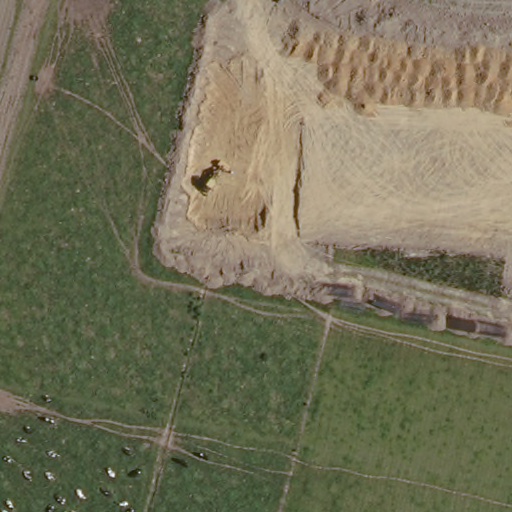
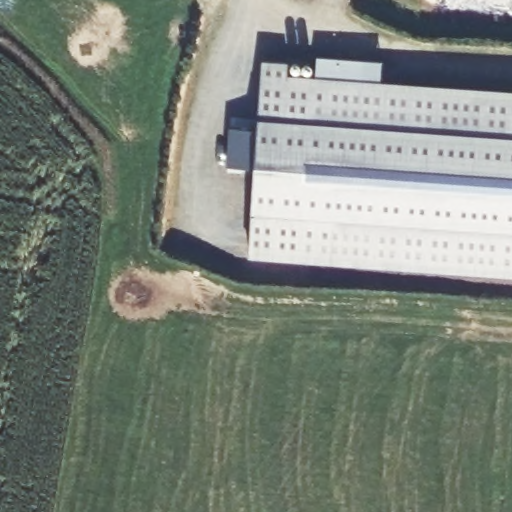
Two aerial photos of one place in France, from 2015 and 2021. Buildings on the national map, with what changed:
new [(225,167),(229,127),(256,131),(262,60),(286,62),(286,75),(314,77),(316,56),(380,61),(379,81),(512,90),(512,276),(248,257),(253,169),(225,167)]

